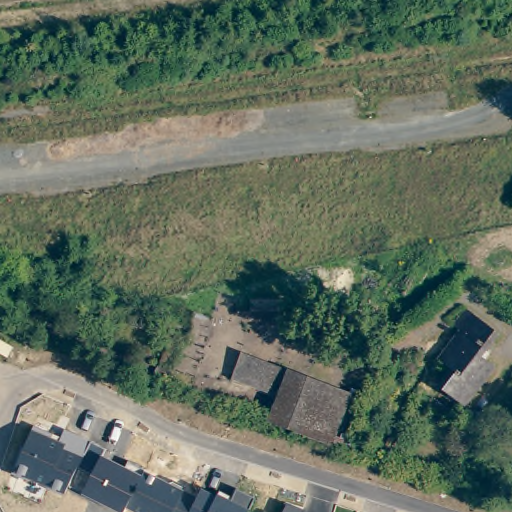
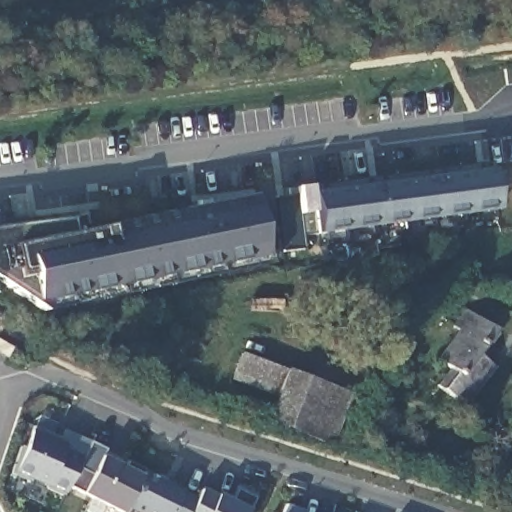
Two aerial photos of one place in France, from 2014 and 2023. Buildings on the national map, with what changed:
new [(297,197),(295,187),(309,186),(488,163),(490,170),(495,210),(495,212),(317,236),(315,234),(301,235),(303,250),(280,252),(273,198),(297,197)]
new [(79,217),(81,232),(99,229),(107,226),(253,196),(268,265),(45,310),(0,280),(0,228),(68,220),(79,217)]
unchanged [(448,391),(459,372),(446,363),(467,335),(459,330),(471,313),(506,337),(494,355),(489,352),(485,357),(501,370),(473,410),(448,391)]
unchanged [(185,337),(168,382),(154,376),(171,332),(185,337)]
unchanged [(353,392),(334,443),(276,421),(285,394),(240,377),(249,354),(353,392)]
unchanged [(60,439),(63,430),(106,449),(105,449),(103,457),(126,467),(127,462),(162,480),(161,481),(198,497),(202,489),(217,496),(218,493),(232,500),(236,489),(254,498),(248,510),(248,512),(136,512),(126,507),(123,512),(120,512),(83,493),(69,485),(63,494),(13,472),(34,427),(60,439)]
unchanged [(303,511),(303,512),(284,512),(287,506),(303,511)]

